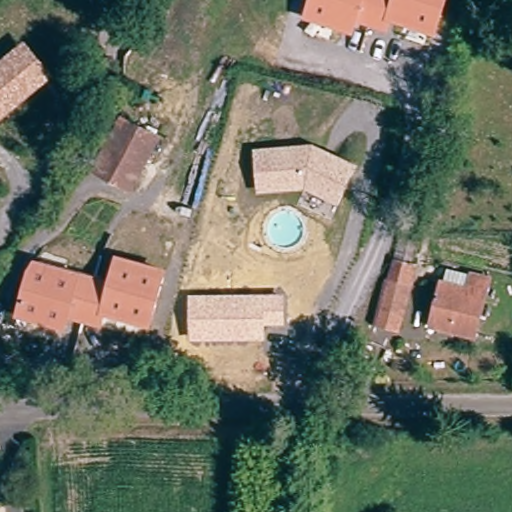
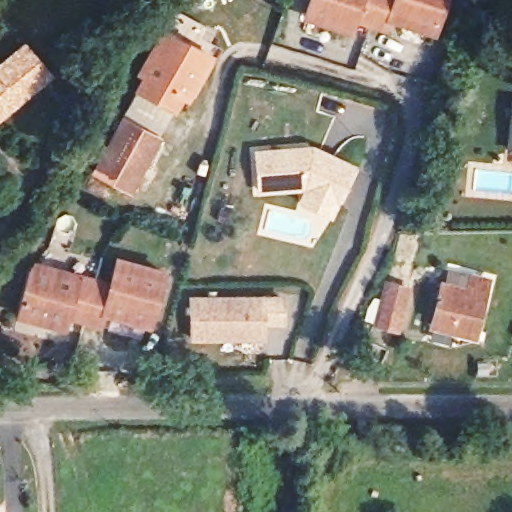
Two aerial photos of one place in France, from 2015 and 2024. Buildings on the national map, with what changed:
unchanged [(436,37),(392,22),(387,34),(357,23),(353,35),(302,19),(308,0),(449,0),(436,37)]
new [(190,105),(184,102),(177,115),(130,90),(162,27),(217,56),(190,105)]
unchanged [(27,47),(52,77),(41,86),(0,118),(0,68),(17,56),(27,47)]
unchanged [(96,172),(122,119),(158,136),(131,191),(108,180),(95,173),(96,172)]
new [(512,119),(512,151),(508,151),(512,119)]
unchanged [(313,142),(353,160),(337,195),(306,181),(261,185),(257,147),(313,142)]
unchanged [(372,332),(402,235),(424,241),(402,335),(372,332)]
unchanged [(30,272),(35,264),(62,271),(110,284),(117,260),(164,272),(149,325),(104,313),(101,325),(67,316),(64,328),(27,319),(17,316),(30,272)]
unchanged [(477,274),(492,278),(476,334),(433,323),(445,285),(472,292),(477,274)]
unchanged [(286,325),(266,325),(266,340),(190,342),(188,294),(284,294),(286,325)]

